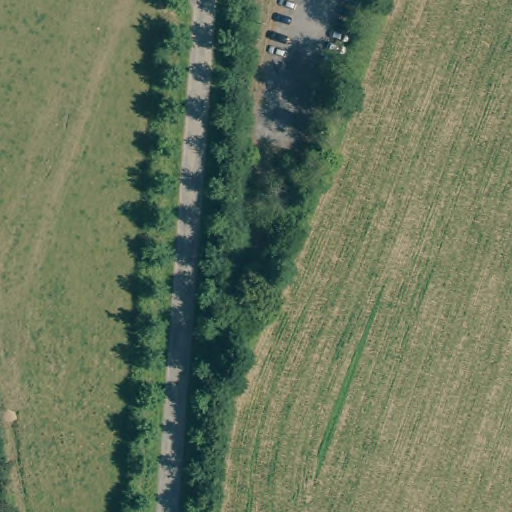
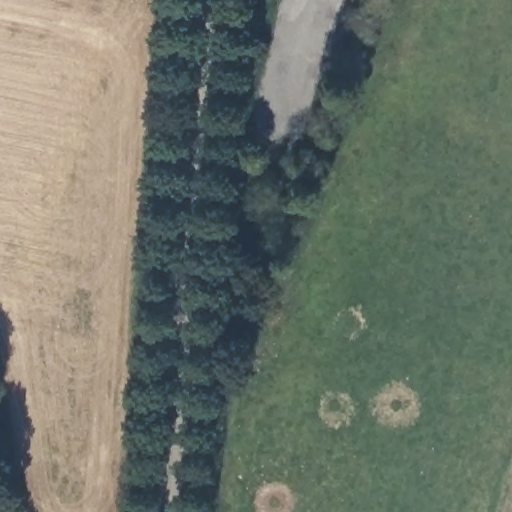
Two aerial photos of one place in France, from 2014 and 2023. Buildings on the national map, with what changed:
[]

